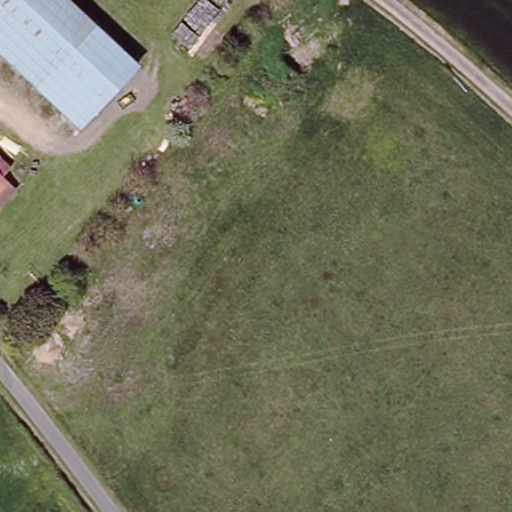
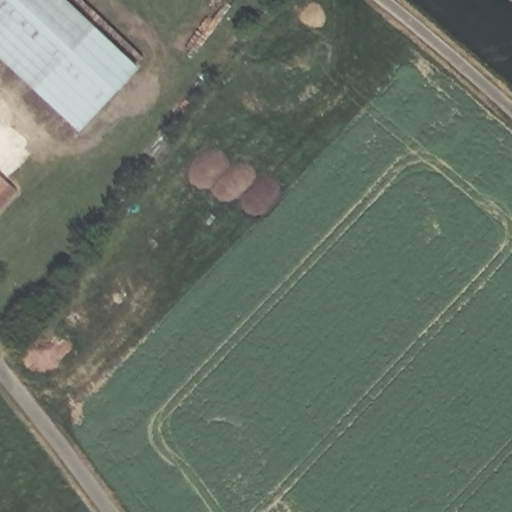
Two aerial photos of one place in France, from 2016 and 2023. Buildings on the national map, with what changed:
unchanged [(139,66),(83,124),(0,47),(0,0),(70,0),(139,66)]
unchanged [(2,161),(0,163),(0,159),(2,161)]
unchanged [(0,195),(0,173),(11,183),(0,195)]

